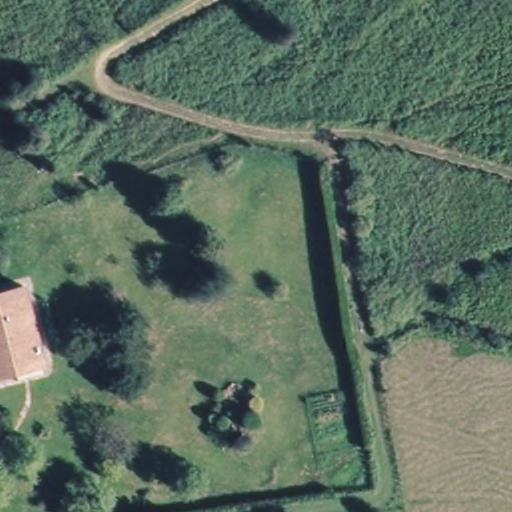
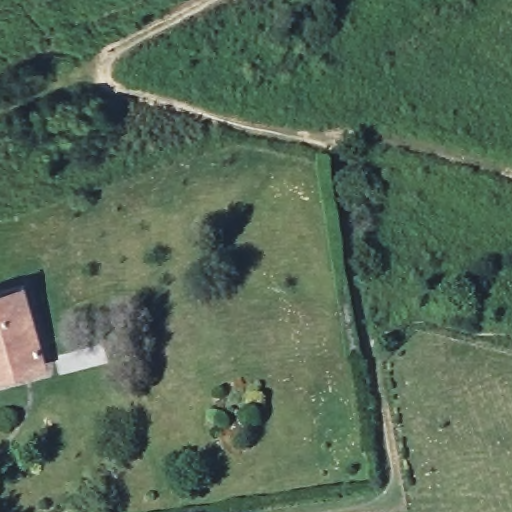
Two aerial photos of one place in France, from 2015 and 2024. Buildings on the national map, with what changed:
unchanged [(19,374),(16,358),(9,376),(0,378),(0,293),(29,286),(31,292),(35,308),(44,349),(49,367),(19,374)]

